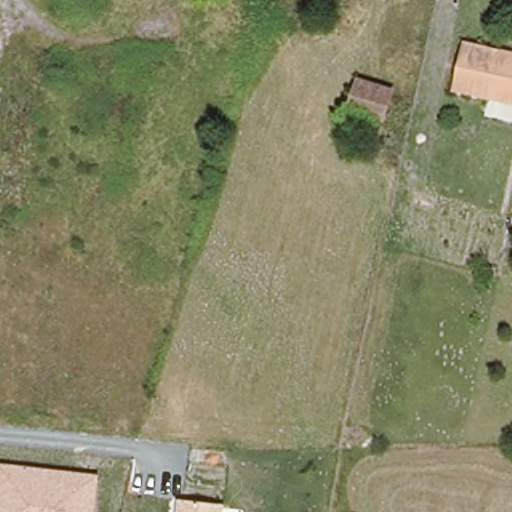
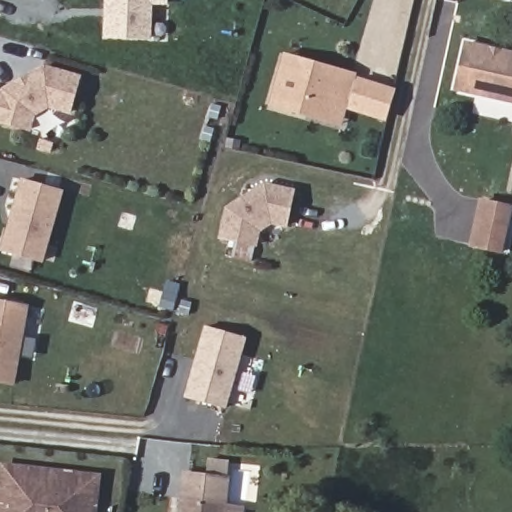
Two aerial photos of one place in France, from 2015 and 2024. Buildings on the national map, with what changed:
new [(169,40),(103,40),(104,0),(168,0),(169,40)]
demolished [(407,41),(419,0),(440,0),(426,46),(407,41)]
unchanged [(467,44),(512,54),(512,101),(457,88),(467,44)]
new [(352,74),(341,123),(271,103),(283,55),(352,74)]
new [(45,66),(82,75),(71,115),(47,109),(36,115),(30,132),(0,124),(0,90),(2,90),(45,66)]
unchanged [(360,78),(395,87),(387,116),(352,107),(360,78)]
new [(64,191),(43,262),(1,251),(21,181),(64,191)]
new [(263,183),(294,189),(287,226),(271,222),(261,228),(258,245),(220,239),(225,209),(263,183)]
new [(512,206),(512,210),(502,256),(470,248),(479,199),(512,206)]
new [(15,386),(0,383),(0,300),(30,305),(15,386)]
new [(246,337),(227,410),(182,398),(204,327),(246,337)]
unchanged [(0,512),(0,468),(1,463),(102,475),(97,512),(0,512)]
unchanged [(246,506),(245,512),(178,512),(179,499),(226,504),(246,506)]

